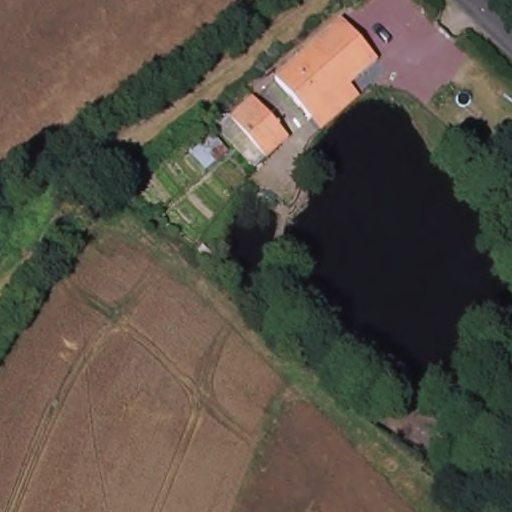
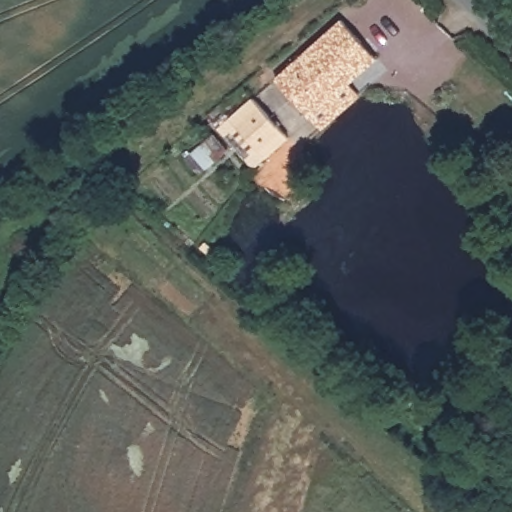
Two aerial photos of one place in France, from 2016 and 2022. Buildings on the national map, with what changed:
unchanged [(321,126),(311,114),(276,74),(344,16),(379,56),(350,81),(360,92),(321,126)]
unchanged [(287,139),(255,169),(219,128),(253,99),(287,139)]

